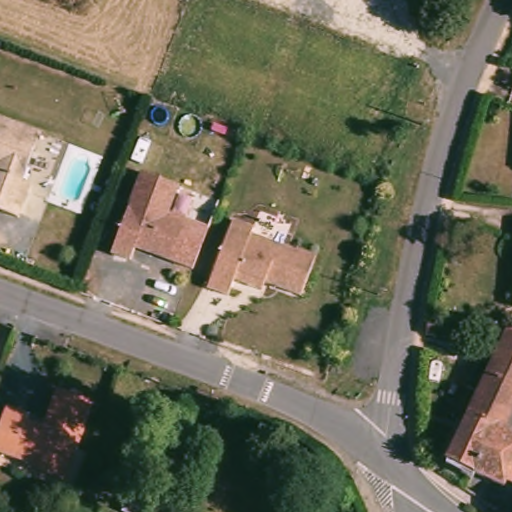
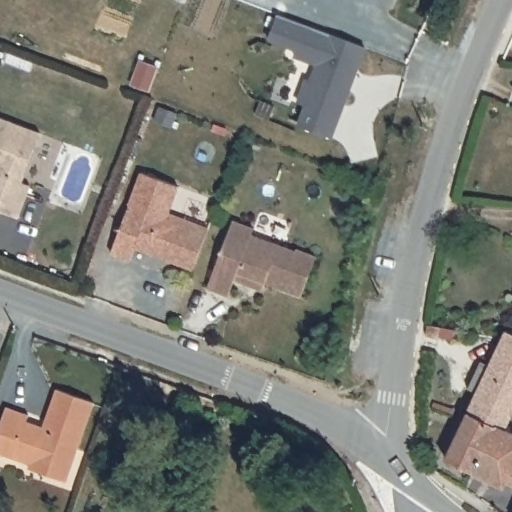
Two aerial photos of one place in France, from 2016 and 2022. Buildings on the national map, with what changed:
new [(297,125),(305,105),(298,102),(305,81),(308,82),(314,65),(294,58),(296,51),(267,40),(276,15),(366,49),(333,138),(297,125)]
unchanged [(39,127),(33,142),(21,176),(30,179),(18,212),(0,206),(0,113),(10,117),(39,127)]
unchanged [(193,268),(171,260),(134,247),(130,260),(110,252),(140,172),(177,185),(165,217),(184,224),(206,232),(193,268)]
unchanged [(302,298),(267,287),(264,294),(234,283),(228,300),(204,291),(231,220),(253,228),(251,236),(317,256),(302,298)]
unchanged [(454,337),(427,332),(428,322),(442,324),(456,327),(454,337)]
unchanged [(505,423),(512,427),(512,476),(510,478),(505,476),(500,485),(445,455),(476,390),(426,365),(438,337),(490,363),(504,336),(506,332),(508,327),(512,327),(512,409),(505,423)]
unchanged [(161,382),(156,392),(152,391),(156,380),(161,382)]
unchanged [(31,468),(0,457),(0,444),(11,412),(31,419),(27,427),(43,433),(58,392),(93,406),(71,472),(66,486),(29,472),(31,468)]
unchanged [(221,403),(218,413),(186,402),(189,392),(221,403)]

